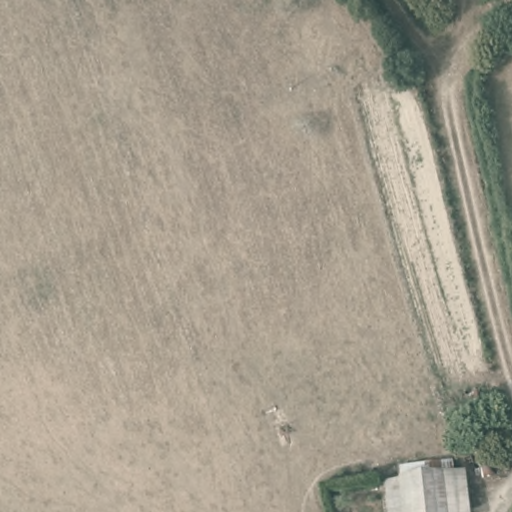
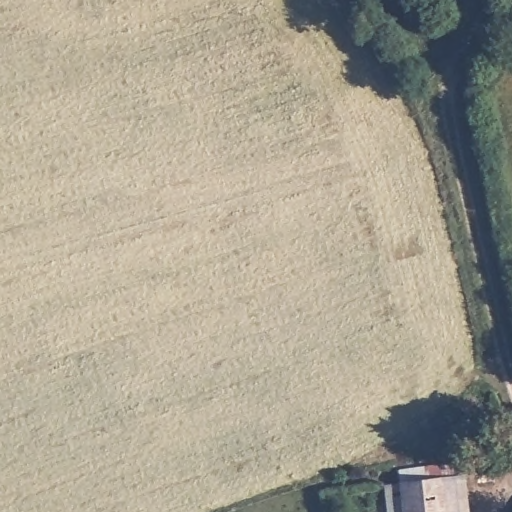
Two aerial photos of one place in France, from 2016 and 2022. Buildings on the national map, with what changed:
unchanged [(411,479),(457,473),(463,512),(386,512),(384,488),(411,479)]

